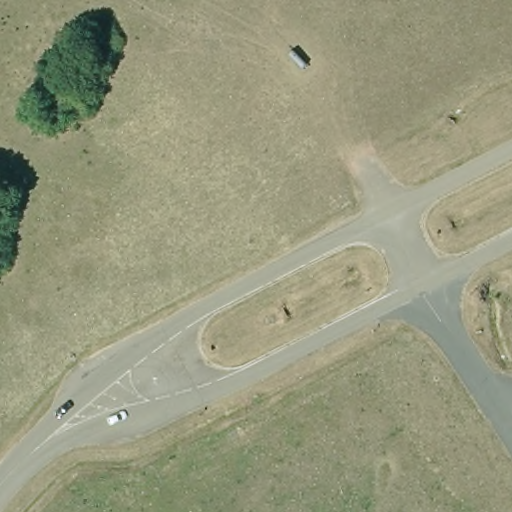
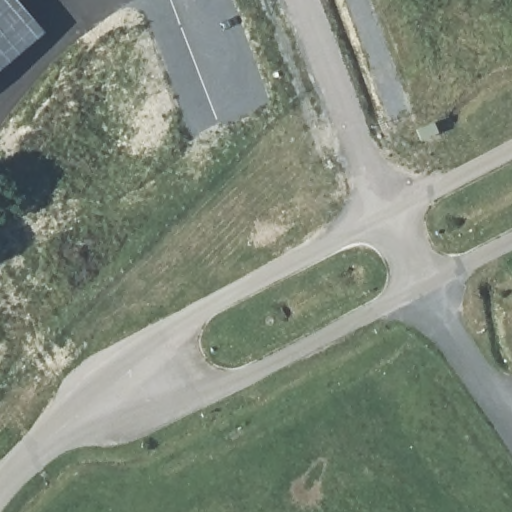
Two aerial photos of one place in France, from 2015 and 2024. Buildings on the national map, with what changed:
new [(0,69),(0,0),(17,0),(44,32),(0,69)]

